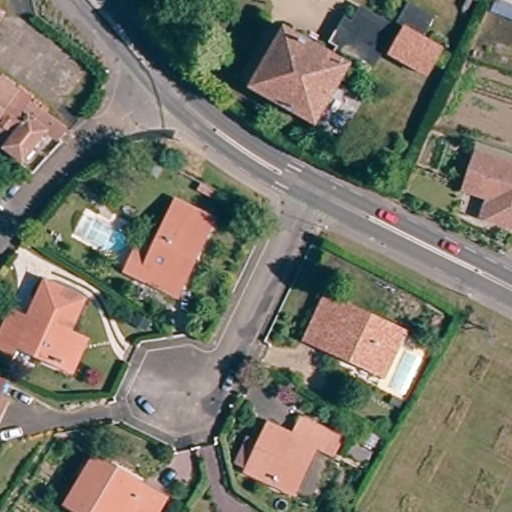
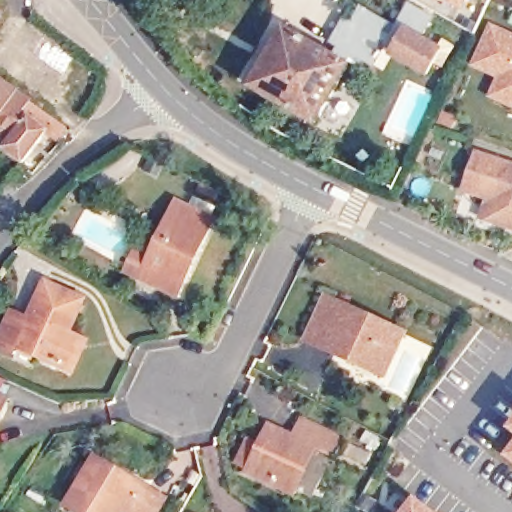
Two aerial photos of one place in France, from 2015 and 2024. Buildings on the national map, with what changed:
new [(427,0),(430,0),(430,1),(427,0)]
new [(445,0),(463,0),(460,6),(445,0)]
unchanged [(252,89),(285,30),(333,57),(338,49),(329,44),(344,17),(353,22),(358,13),(393,33),(405,12),(427,26),(420,40),(440,51),(449,55),(443,64),(435,60),(427,76),(391,55),(394,51),(381,42),(369,63),(362,60),(360,64),(352,60),(349,66),(316,125),(252,89)]
new [(491,99),(500,80),(471,67),(491,23),(512,32),(512,107),(491,99)]
unchanged [(34,104),(26,117),(12,107),(0,125),(0,78),(35,102),(34,104)]
unchanged [(62,141),(51,132),(28,162),(9,148),(11,146),(0,136),(0,125),(12,107),(26,117),(34,104),(70,130),(62,141)]
unchanged [(487,187),(463,180),(467,167),(475,144),(512,156),(512,218),(490,211),(481,207),(487,187)]
unchanged [(182,285),(133,262),(141,243),(155,250),(182,194),(218,211),(182,285)]
unchanged [(24,262),(27,281),(18,282),(15,263),(24,262)]
unchanged [(72,372),(16,347),(13,353),(0,347),(0,340),(12,313),(29,321),(46,283),(84,301),(69,334),(86,342),(82,350),(72,372)]
unchanged [(321,347),(307,341),(326,300),(340,306),(404,335),(385,376),(321,347)]
unchanged [(0,412),(0,400),(4,402),(0,412)]
unchanged [(246,473),(247,471),(235,465),(247,438),(259,443),(268,425),(291,436),(299,418),(342,438),(334,457),(316,448),(294,496),(246,473)]
new [(509,428),(512,425),(512,430),(509,428)]
unchanged [(374,449),(361,442),(367,432),(380,438),(374,449)]
unchanged [(346,455),(351,443),(373,453),(367,465),(346,455)]
new [(508,458),(512,454),(512,461),(508,458)]
unchanged [(157,512),(77,512),(67,506),(95,458),(165,500),(157,512)]
new [(409,500),(420,508),(426,512),(400,512),(409,500)]

